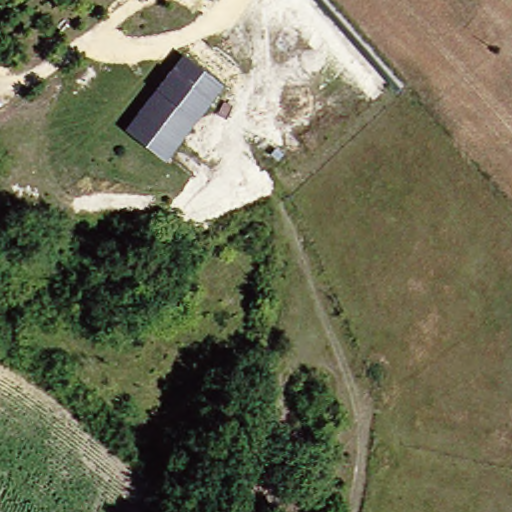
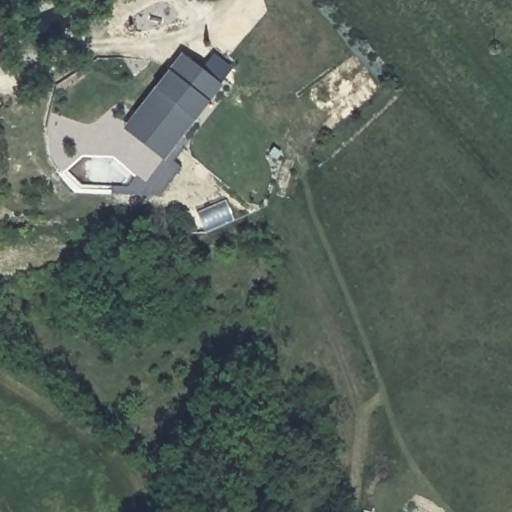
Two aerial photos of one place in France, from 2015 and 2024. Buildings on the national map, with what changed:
unchanged [(179,54),(220,86),(175,145),(135,111),(179,54)]

